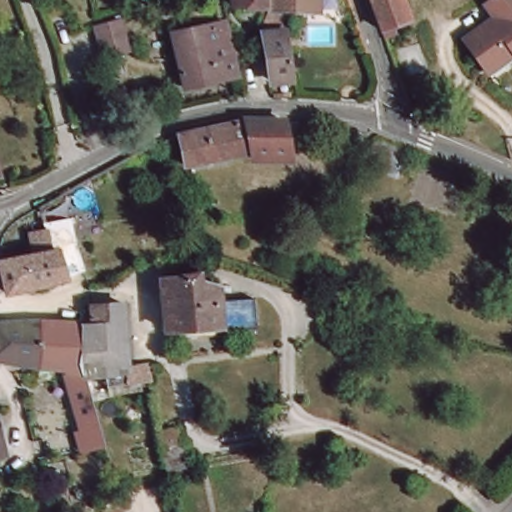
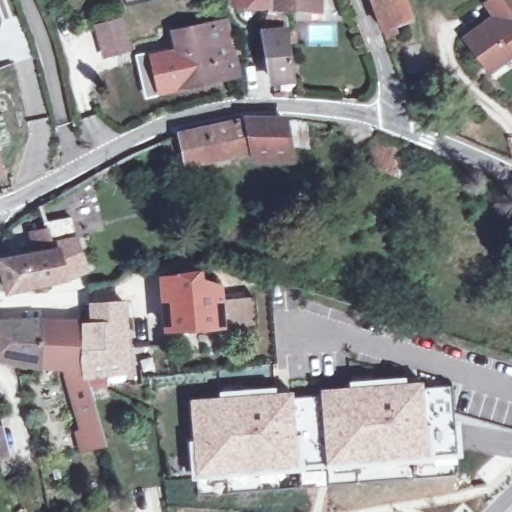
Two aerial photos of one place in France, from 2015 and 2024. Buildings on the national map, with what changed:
unchanged [(269,7),(233,5),(233,0),(319,0),(318,10),(269,7)]
unchanged [(387,34),(374,0),(406,0),(414,23),(399,29),(402,38),(390,44),(387,34)]
unchanged [(460,32),(491,10),(484,0),(512,0),(512,47),(512,46),(485,65),(481,60),(460,32)]
unchanged [(271,81),(265,34),(277,31),(277,13),(285,13),(293,79),(271,81)]
unchanged [(127,46),(104,53),(97,23),(120,18),(127,46)]
unchanged [(227,24),(237,74),(185,84),(172,30),(226,19),(227,24)]
unchanged [(294,161),(258,156),(191,171),(184,139),(251,124),(288,125),(294,161)]
unchanged [(410,154),(402,178),(363,161),(372,139),(410,154)]
unchanged [(165,148),(178,141),(182,153),(167,156),(165,148)]
unchanged [(69,217),(84,269),(65,278),(7,291),(0,261),(32,254),(28,233),(45,229),(43,221),(69,217)]
unchanged [(250,298),(251,324),(162,331),(157,277),(195,270),(197,278),(215,284),(215,300),(250,298)]
unchanged [(103,373),(108,402),(92,405),(104,444),(105,445),(82,449),(75,429),(77,429),(62,374),(64,375),(65,365),(37,360),(0,354),(0,321),(33,319),(38,319),(80,321),(94,322),(92,318),(90,312),(90,305),(123,303),(127,365),(127,370),(103,373)]
new [(422,380),(422,388),(449,384),(456,451),(428,453),(195,475),(191,399),(422,380)]
unchanged [(3,450),(0,451),(0,438),(3,450)]
unchanged [(15,512),(23,509),(24,512),(16,512),(15,512)]

